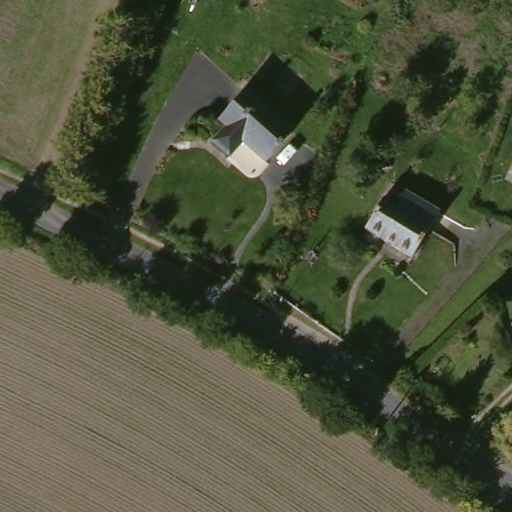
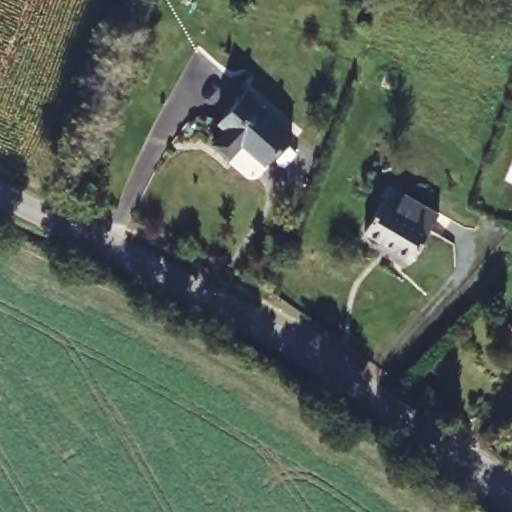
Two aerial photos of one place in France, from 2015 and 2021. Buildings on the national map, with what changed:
unchanged [(262,165),(250,152),(236,166),(215,145),(228,130),(219,121),(249,94),(295,136),(262,165)]
unchanged [(409,265),(356,235),(374,204),(396,217),(409,196),(438,213),(409,265)]
unchanged [(512,323),(512,327),(510,327),(512,323)]

